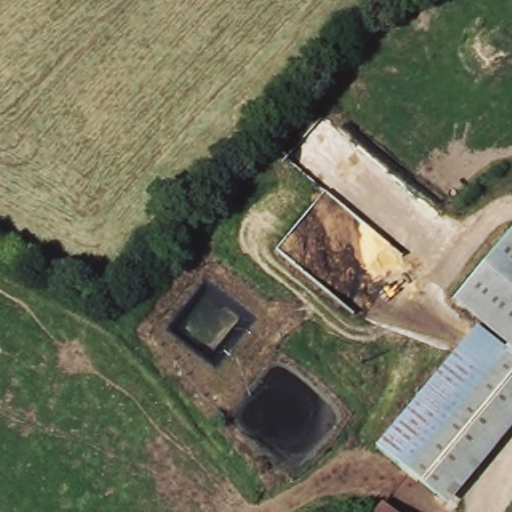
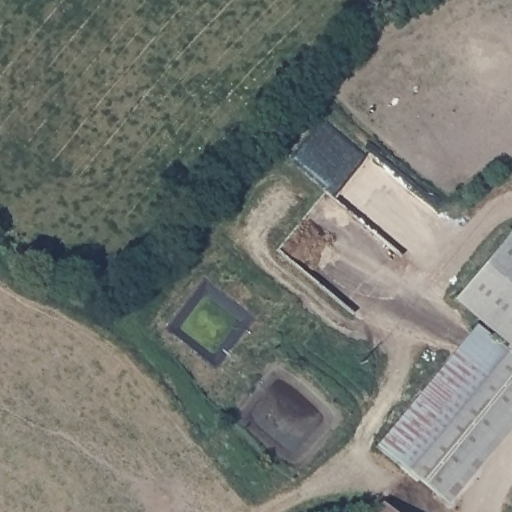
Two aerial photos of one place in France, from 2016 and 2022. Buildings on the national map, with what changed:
unchanged [(373,445),(476,321),(450,299),(512,228),(512,347),(509,351),(512,353),(512,424),(443,505),(373,445)]
unchanged [(509,351),(512,347),(512,353),(509,351)]
unchanged [(392,512),(374,512),(381,504),(392,512)]

